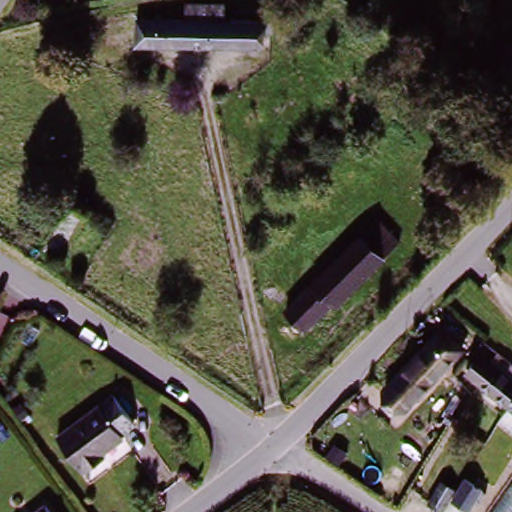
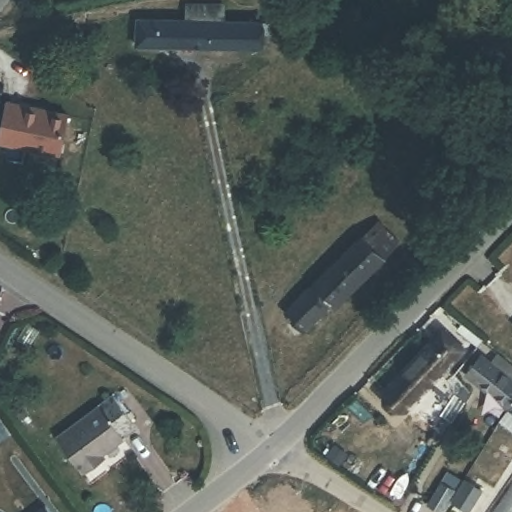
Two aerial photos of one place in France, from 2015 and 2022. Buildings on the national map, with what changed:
unchanged [(190,27),(191,12),(216,12),(215,28),(257,30),(256,54),(139,48),(140,24),(190,27)]
unchanged [(498,85),(512,68),(512,96),(498,85)]
unchanged [(467,124),(457,138),(410,103),(421,90),(467,124)]
new [(61,157),(0,145),(0,131),(8,100),(68,113),(61,157)]
unchanged [(375,228),(393,248),(302,334),(283,314),(375,228)]
unchanged [(447,335),(465,356),(397,411),(379,390),(447,335)]
unchanged [(463,380),(473,365),(499,382),(509,367),(512,370),(512,412),(506,408),(463,380)]
unchanged [(114,391),(133,418),(120,428),(122,434),(96,452),(100,459),(85,470),(58,432),(114,391)]
unchanged [(450,509),(433,498),(449,472),(467,483),(450,509)]
unchanged [(49,512),(30,512),(43,503),(49,512)]

